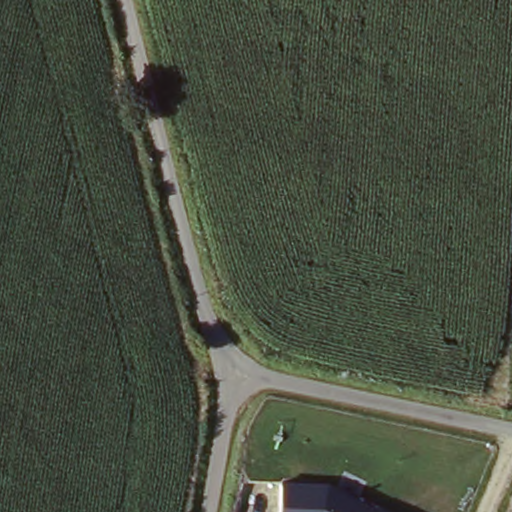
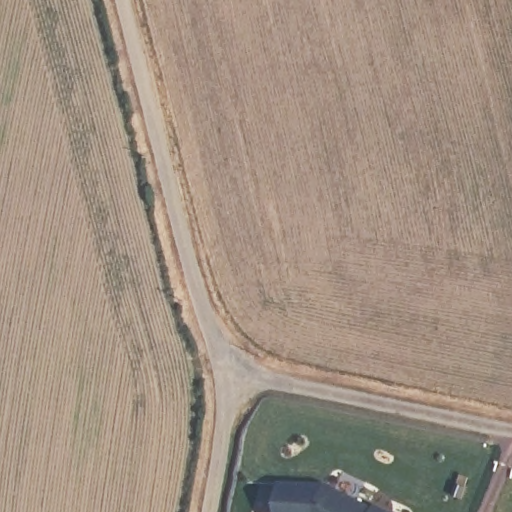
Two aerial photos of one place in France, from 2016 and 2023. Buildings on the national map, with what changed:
unchanged [(280,481),(333,481),(396,512),(278,512),(280,481)]

